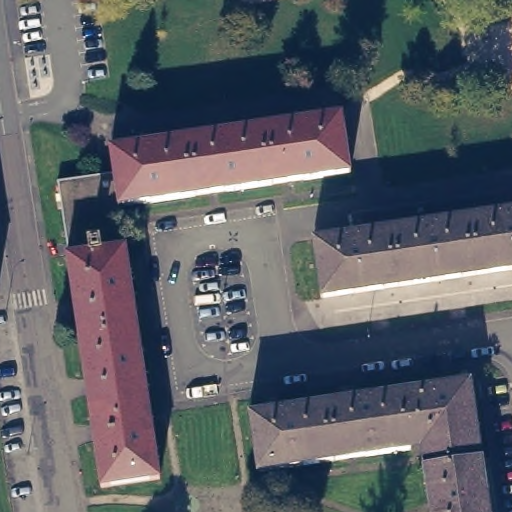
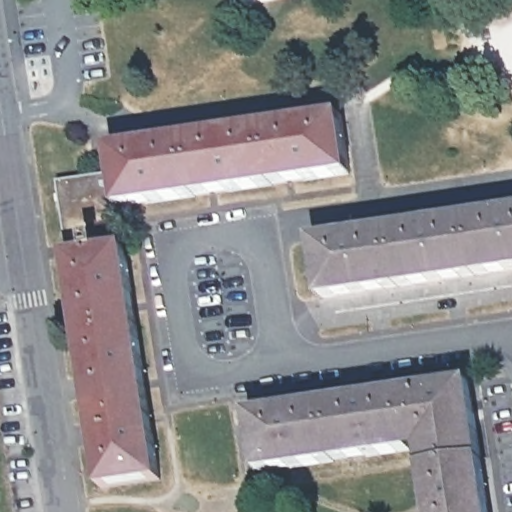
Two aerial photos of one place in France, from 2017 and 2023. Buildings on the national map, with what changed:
unchanged [(131,244),(165,474),(107,483),(72,252),(73,251),(62,177),(105,171),(119,169),(115,144),(346,110),(355,169),(125,203),(131,244)]
unchanged [(512,267),(322,295),(314,236),(512,207),(512,267)]
unchanged [(431,512),(420,443),(258,468),(249,410),(470,377),(490,512),(431,512)]

